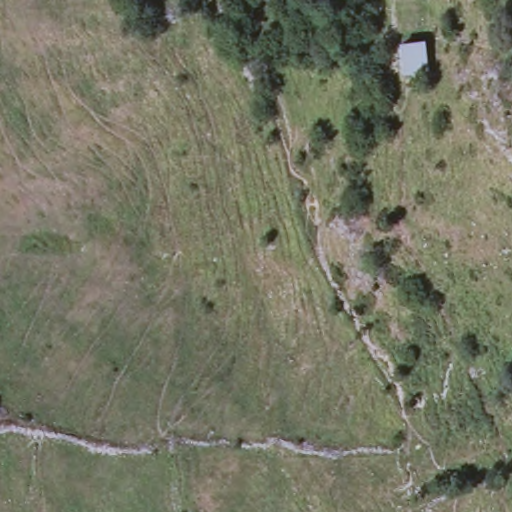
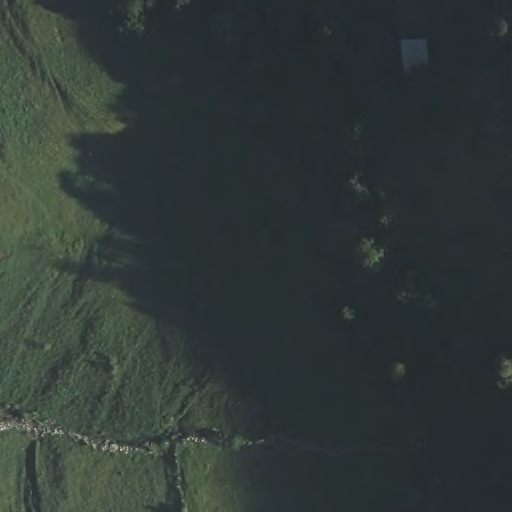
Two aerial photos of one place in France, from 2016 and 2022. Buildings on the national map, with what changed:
unchanged [(432,74),(398,76),(394,0),(428,0),(432,74)]

